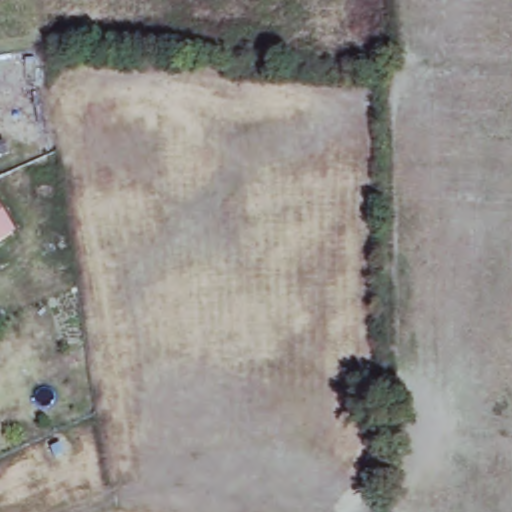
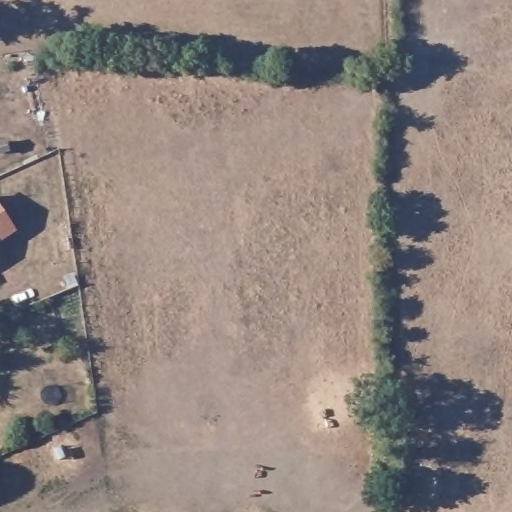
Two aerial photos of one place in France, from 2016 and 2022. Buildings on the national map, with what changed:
unchanged [(16,232),(0,242),(0,207),(16,232)]

